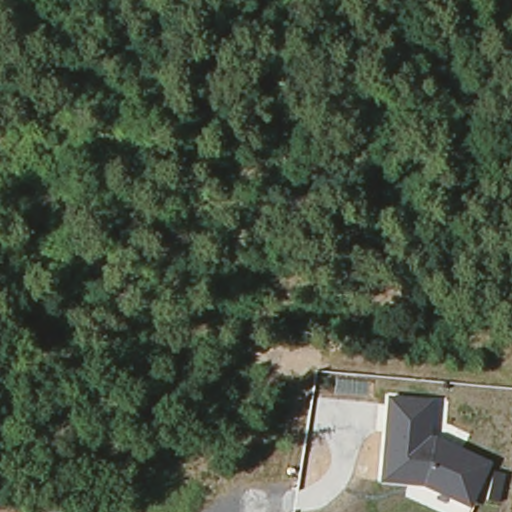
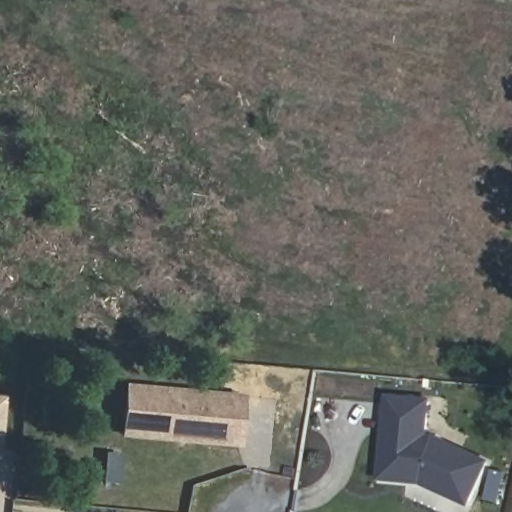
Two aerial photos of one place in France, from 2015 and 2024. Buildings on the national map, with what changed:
new [(120,437),(125,384),(246,394),(241,447),(120,437)]
unchanged [(433,398),(429,432),(491,461),(470,509),(416,485),(380,482),(387,394),(433,398)]
new [(0,395),(7,396),(1,460),(0,460),(0,395)]

